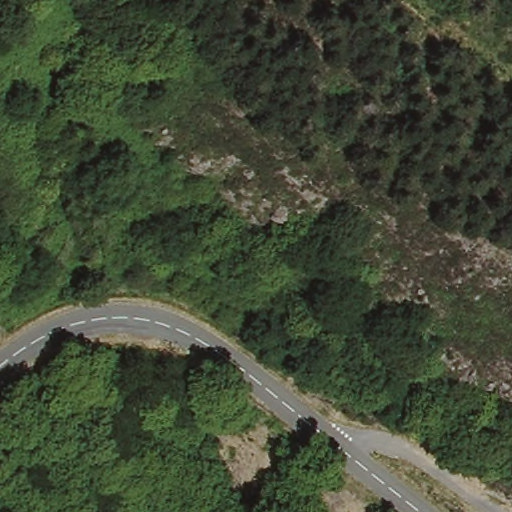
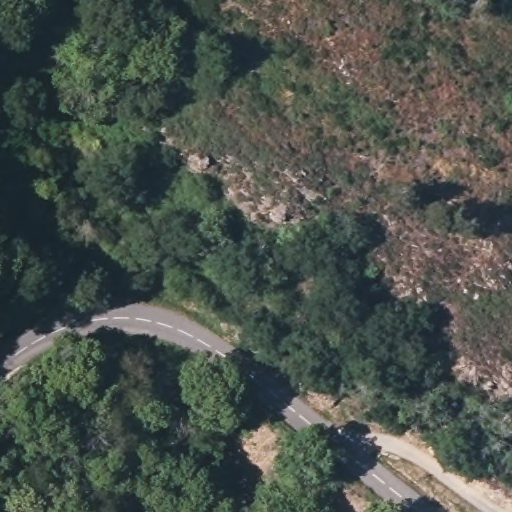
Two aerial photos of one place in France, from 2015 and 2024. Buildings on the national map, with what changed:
[]

